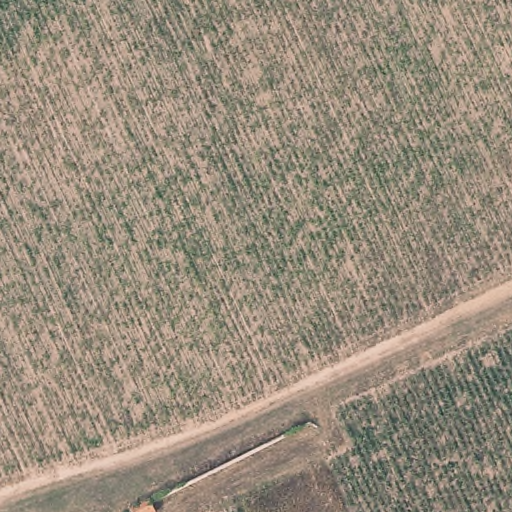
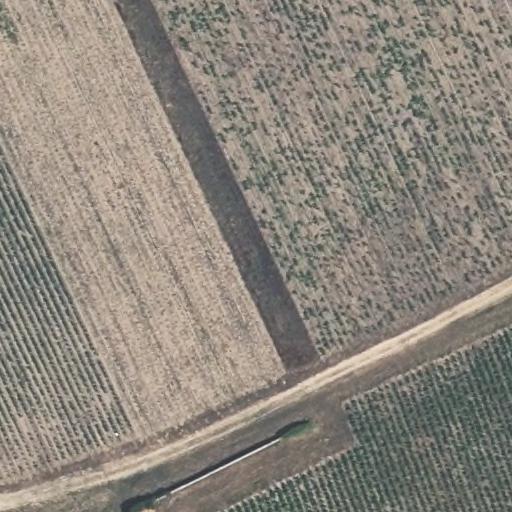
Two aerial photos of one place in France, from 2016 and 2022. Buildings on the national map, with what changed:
unchanged [(130,510),(157,497),(165,512),(132,512),(130,510)]

